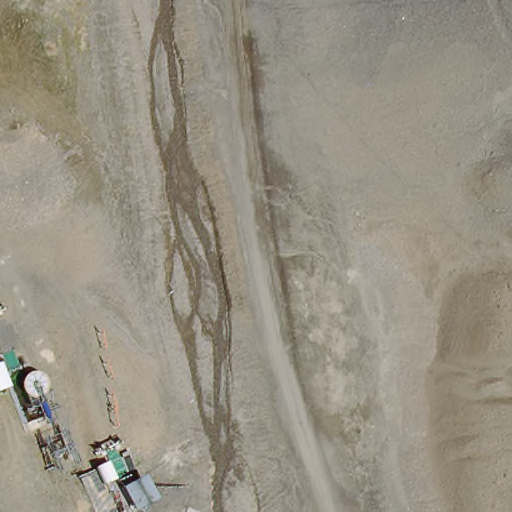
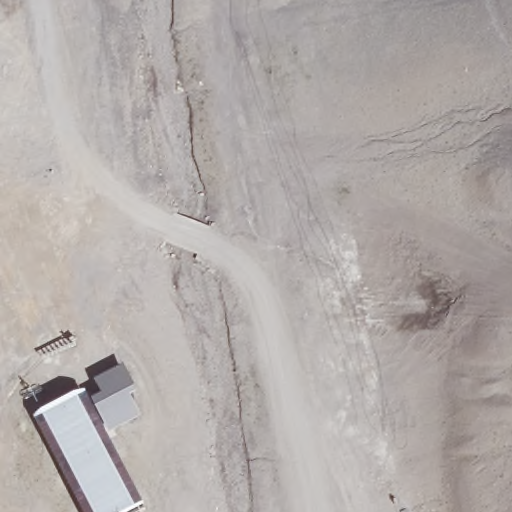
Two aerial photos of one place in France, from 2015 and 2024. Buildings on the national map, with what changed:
new [(78,395),(94,389),(85,376),(125,359),(139,392),(133,393),(147,415),(110,433),(146,504),(130,512),(80,512),(30,414),(76,389),(78,395)]
demolished [(12,393),(0,398),(0,365),(2,364),(12,393)]
demolished [(156,508),(148,512),(125,512),(115,491),(142,478),(156,508)]

